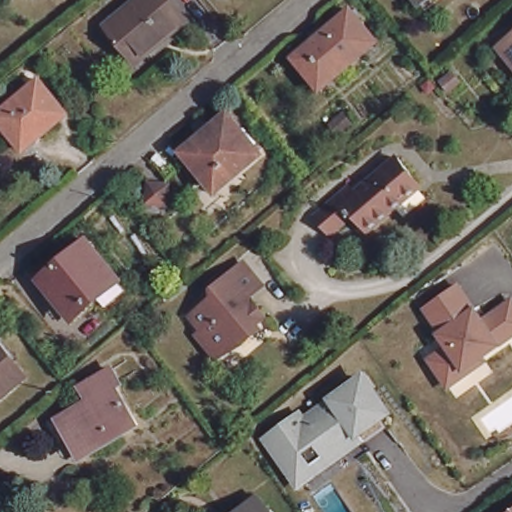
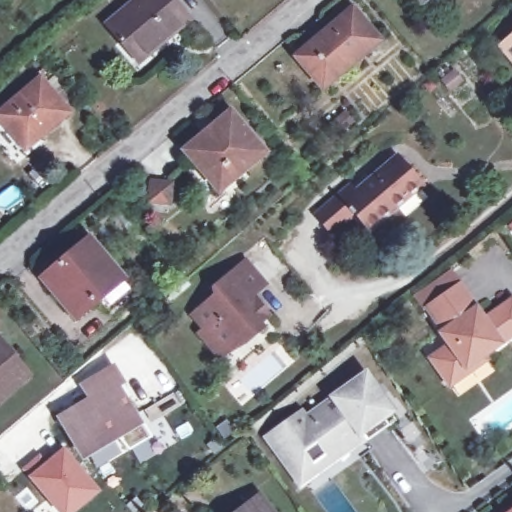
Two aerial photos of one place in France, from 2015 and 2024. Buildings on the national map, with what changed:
unchanged [(178,17),(129,59),(100,25),(130,0),(163,0),(178,17)]
unchanged [(422,6),(418,0),(429,0),(422,6)]
unchanged [(380,43),(323,91),(297,60),(353,13),(380,43)]
unchanged [(512,37),(512,58),(501,46),(512,37)]
unchanged [(59,120),(40,136),(39,135),(25,148),(0,118),(0,111),(40,77),(65,106),(70,111),(59,120)]
unchanged [(354,122),(340,133),(331,122),(345,111),(354,122)]
unchanged [(215,185),(190,154),(207,140),(200,132),(213,121),(220,129),(236,116),(268,154),(238,179),(222,193),(215,185)]
unchanged [(358,191),(371,180),(375,185),(403,162),(425,189),(372,234),(360,219),(336,238),(320,218),(356,188),(358,191)]
unchanged [(171,183),(168,203),(148,200),(151,180),(171,183)]
unchanged [(112,306),(102,294),(76,316),(43,276),(88,238),(121,277),(131,290),(112,306)]
unchanged [(216,348),(200,329),(204,325),(192,311),(220,288),(215,282),(244,257),(265,280),(248,294),(253,299),(257,296),(270,310),(237,339),(220,353),(216,348)]
unchanged [(487,363),(448,389),(427,357),(448,344),(423,307),(460,282),(485,316),(512,298),(512,338),(485,357),(487,363)]
unchanged [(26,372),(0,394),(0,341),(26,372)]
unchanged [(307,414),(330,398),(368,370),(398,412),(385,420),(388,428),(298,490),(262,439),(303,409),(307,414)]
unchanged [(88,402),(80,389),(109,372),(125,399),(120,402),(135,427),(78,460),(56,421),(88,402)]
new [(40,457),(45,465),(64,450),(96,490),(69,512),(62,512),(26,468),(40,457)]
unchanged [(236,512),(260,493),(275,512),(236,512)]

